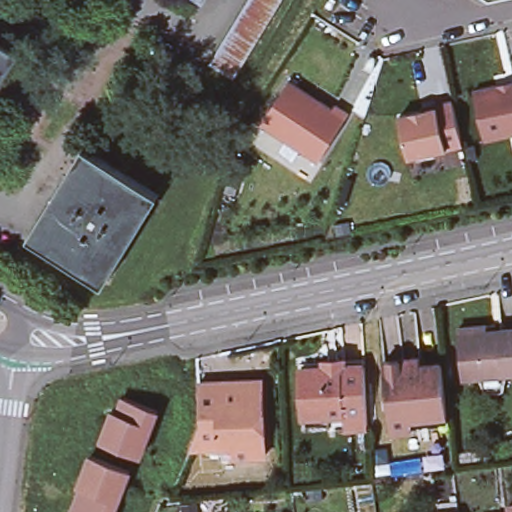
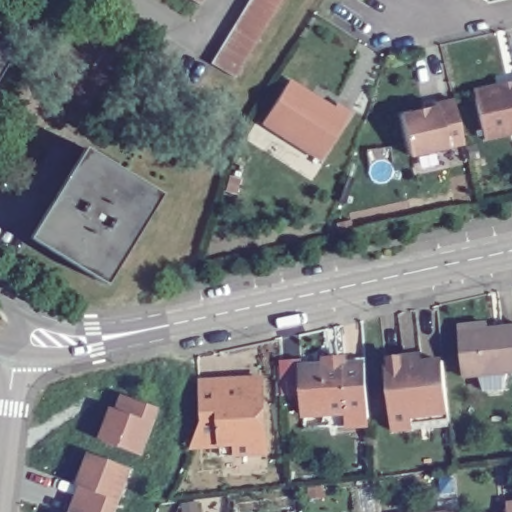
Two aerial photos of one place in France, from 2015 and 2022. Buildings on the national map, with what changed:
unchanged [(191,0),(203,0),(200,5),(191,0)]
unchanged [(281,0),(234,77),(210,63),(248,0),(281,0)]
unchanged [(10,52),(0,69),(0,46),(10,52)]
unchanged [(319,160),(308,152),(261,122),(287,82),(318,102),(320,99),(333,107),(335,103),(340,106),(350,112),(319,160)]
unchanged [(512,133),(485,139),(474,90),(497,85),(512,82),(512,133)]
unchanged [(422,106),(436,103),(453,99),(463,143),(409,155),(400,114),(423,109),(422,106)]
unchanged [(85,148),(160,194),(105,283),(30,237),(85,148)]
unchanged [(512,373),(463,377),(459,333),(512,328),(512,373)]
unchanged [(413,419),(399,420),(391,422),(391,416),(384,351),(405,348),(421,347),(421,355),(430,353),(442,352),(448,404),(449,415),(413,419)]
unchanged [(306,375),(305,368),(331,366),(332,371),(347,370),(351,365),(370,363),(372,410),(367,410),(350,411),(350,413),(308,416),(306,375)]
unchanged [(206,422),(204,382),(267,379),(271,453),(226,456),(226,446),(195,447),(206,422)]
unchanged [(110,412),(117,397),(158,413),(153,423),(156,425),(144,461),(100,442),(110,412)]
unchanged [(117,512),(82,498),(88,483),(83,482),(95,450),(135,465),(117,512)]
unchanged [(80,505),(82,498),(117,512),(77,512),(80,505)]
unchanged [(437,502),(457,500),(459,512),(438,512),(437,502)]

